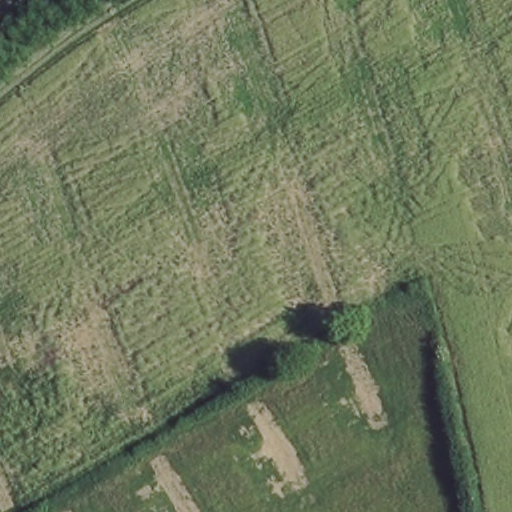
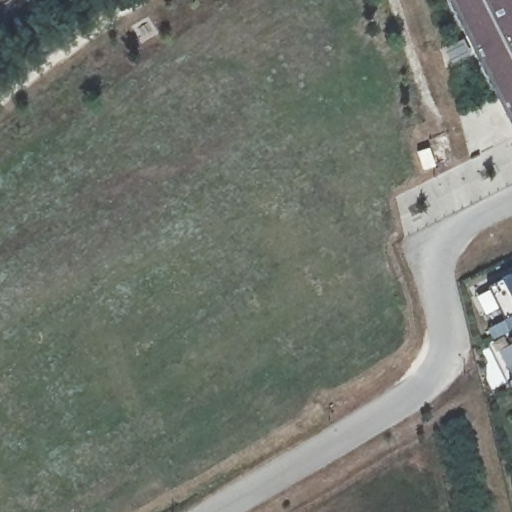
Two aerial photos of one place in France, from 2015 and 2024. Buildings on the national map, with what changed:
new [(445,0),(512,0),(512,134),(445,0)]
new [(512,276),(512,334),(511,335),(496,305),(509,298),(502,282),(512,276)]

